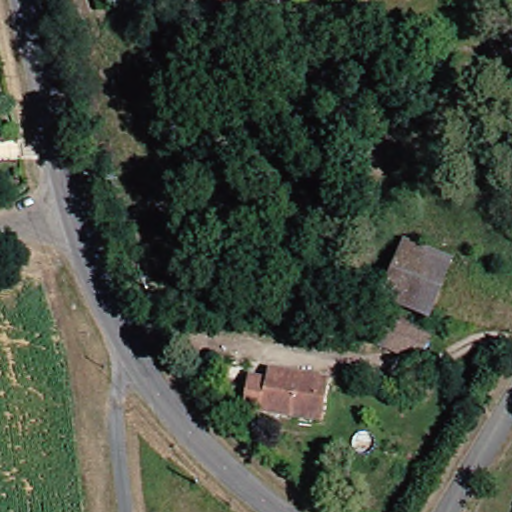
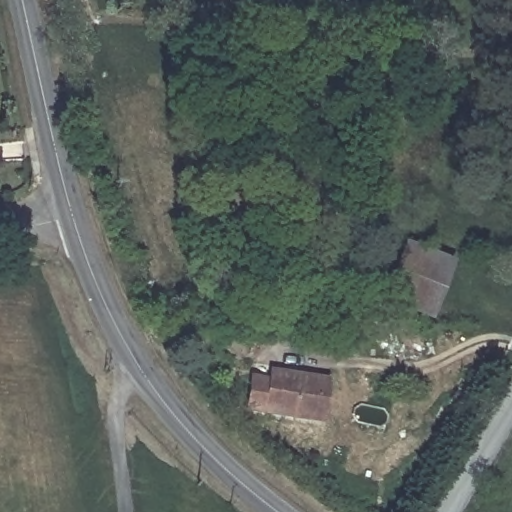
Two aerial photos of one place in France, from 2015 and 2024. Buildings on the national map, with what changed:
unchanged [(455,260),(434,315),(396,302),(414,244),(455,260)]
unchanged [(424,358),(389,341),(399,325),(432,341),(424,358)]
unchanged [(253,388),(276,389),(278,379),(335,384),(332,423),(249,417),(253,388)]

